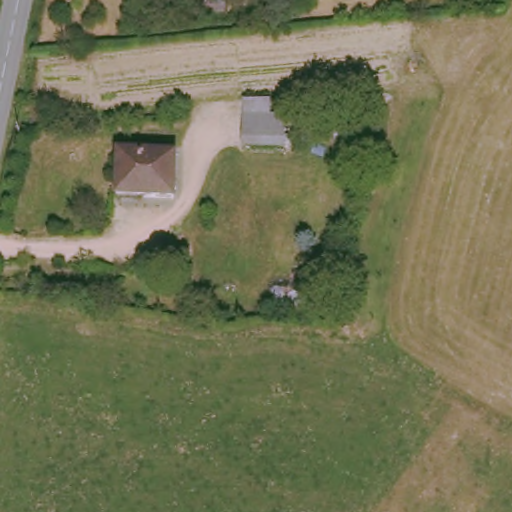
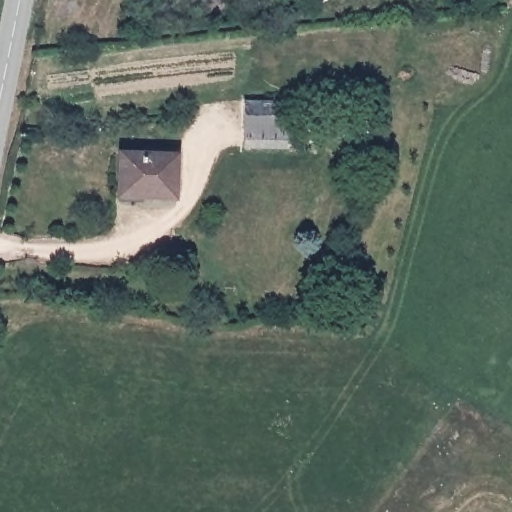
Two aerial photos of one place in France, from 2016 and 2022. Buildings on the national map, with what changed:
unchanged [(280,116),(289,118),(285,147),(248,142),(252,110),(255,95),(282,99),(281,109),(280,116)]
unchanged [(117,156),(173,155),(173,196),(118,196),(117,156)]

